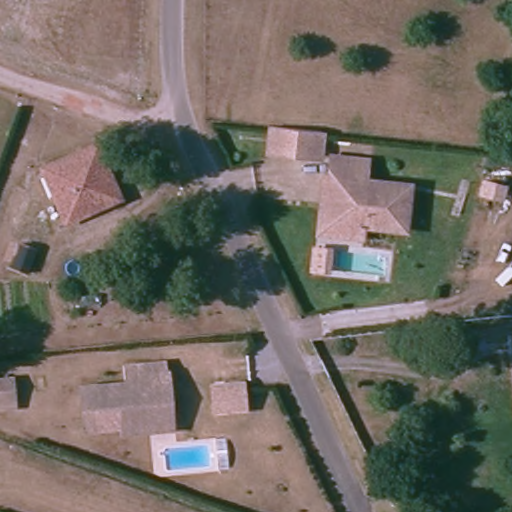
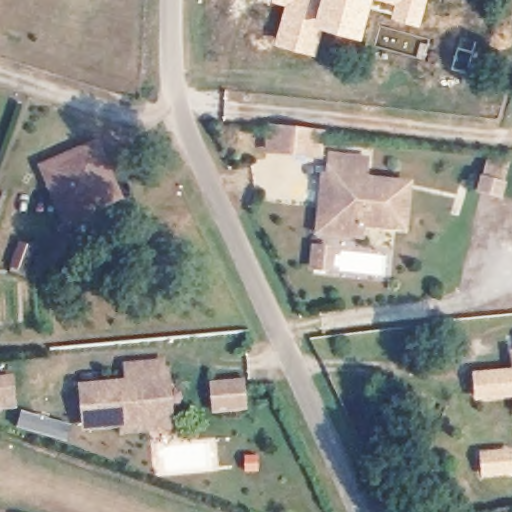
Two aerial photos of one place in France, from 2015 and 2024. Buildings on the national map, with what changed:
new [(271,0),(427,0),(420,26),(390,16),(392,7),(373,1),(362,39),(323,27),(315,56),(273,44),(284,5),(271,1),(271,0)]
unchanged [(322,163),(272,157),(275,132),(325,138),(322,163)]
unchanged [(120,198),(74,219),(66,223),(42,169),(88,148),(95,145),(120,198)]
unchanged [(406,236),(365,232),(334,228),(338,186),(332,185),(333,164),(368,168),(367,188),(411,193),(406,236)]
unchanged [(338,186),(334,228),(365,232),(363,244),(320,239),(327,184),(332,185),(338,186)]
unchanged [(486,185),(492,187),(508,191),(506,198),(506,201),(502,200),(490,197),(483,195),(486,185)]
unchanged [(315,275),(317,255),(327,256),(325,276),(315,275)]
unchanged [(124,433),(123,423),(87,426),(85,388),(127,384),(126,369),(162,367),(164,383),(167,429),(124,433)]
unchanged [(0,391),(0,371),(17,370),(19,390),(0,391)]
new [(512,370),(512,397),(476,402),(474,373),(512,370)]
unchanged [(209,383),(246,379),(248,413),(211,414),(209,383)]

